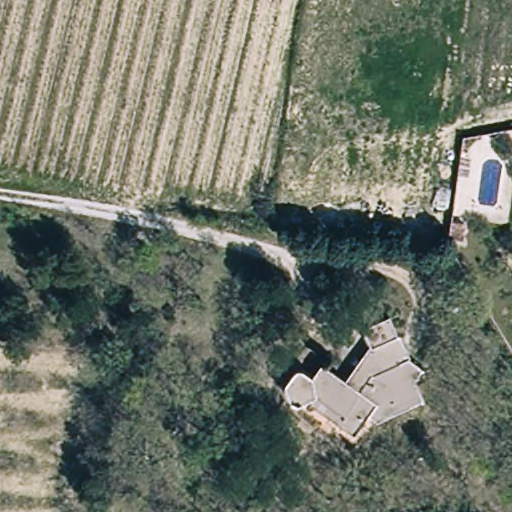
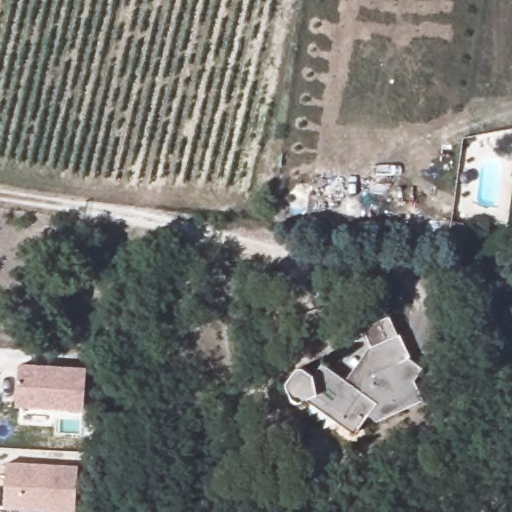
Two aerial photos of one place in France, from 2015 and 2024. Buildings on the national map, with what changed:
unchanged [(379,418),(369,412),(359,427),(305,395),(299,401),(294,379),(302,365),(318,372),(324,359),(350,374),(375,337),(368,324),(392,311),(411,357),(425,367),(419,374),(430,394),(379,418)]
new [(18,361),(85,364),(83,404),(16,401),(18,361)]
new [(5,459),(75,464),(73,509),(2,504),(5,459)]

